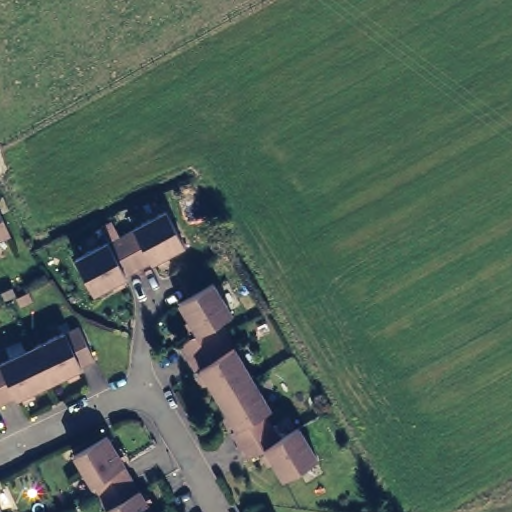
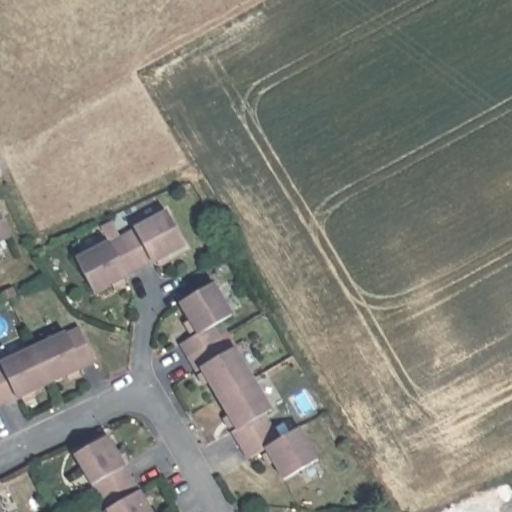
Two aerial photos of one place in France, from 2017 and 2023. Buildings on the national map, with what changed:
unchanged [(98,292),(79,258),(111,240),(112,242),(137,229),(136,227),(169,209),(188,245),(157,262),(155,263),(152,262),(130,274),(130,276),(129,277),(98,292)]
unchanged [(0,245),(0,222),(9,241),(0,245)]
unchanged [(193,296),(217,281),(235,312),(217,325),(231,350),(237,347),(275,409),(268,412),(283,437),(302,425),(322,457),(287,477),(269,448),(252,458),(236,430),(240,428),(203,368),(200,370),(184,343),(200,332),(184,302),(193,296)]
unchanged [(65,337),(77,330),(93,364),(82,369),(82,370),(17,402),(15,400),(0,408),(0,366),(64,335),(65,337)]
unchanged [(95,489),(94,488),(85,474),(86,474),(78,460),(110,440),(128,468),(128,470),(154,512),(109,512),(95,489)]
unchanged [(0,500),(6,512),(0,512),(0,500)]

